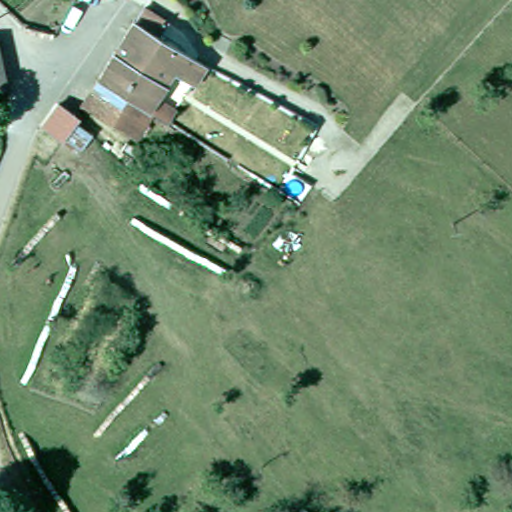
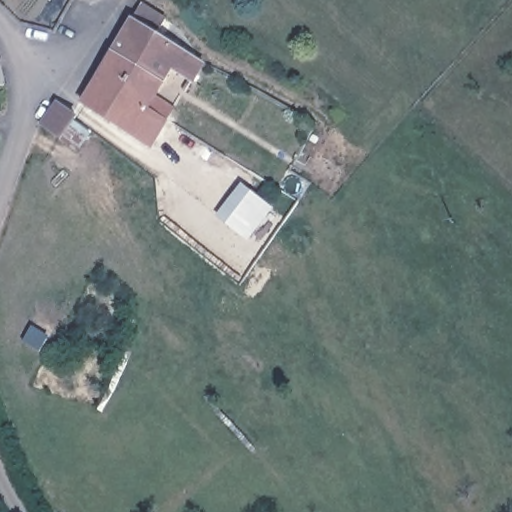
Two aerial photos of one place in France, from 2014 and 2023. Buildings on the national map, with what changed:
unchanged [(173,72),(167,68),(149,96),(169,108),(163,120),(147,109),(129,137),(75,104),(128,17),(138,1),(163,16),(153,32),(200,62),(191,77),(176,68),(173,72)]
unchanged [(0,71),(3,84),(0,85),(0,71)]
unchanged [(43,121),(57,98),(74,114),(61,135),(43,121)]
new [(274,208),(248,241),(216,217),(243,183),(274,208)]

